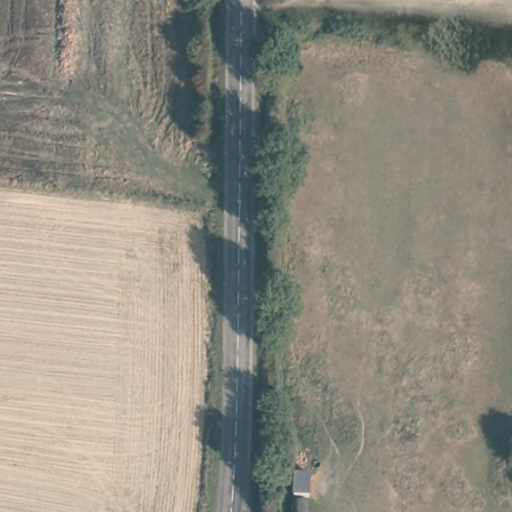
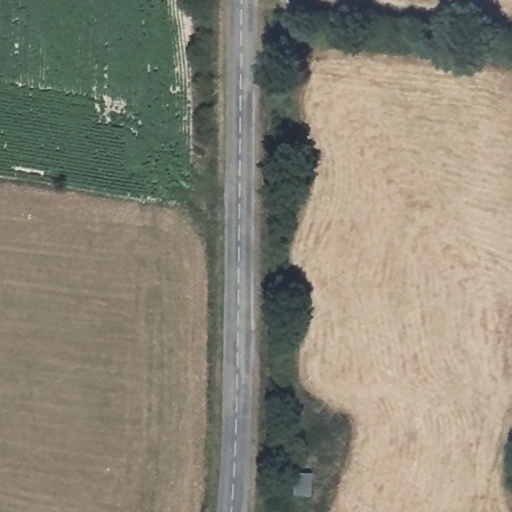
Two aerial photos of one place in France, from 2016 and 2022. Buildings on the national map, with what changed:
[]

